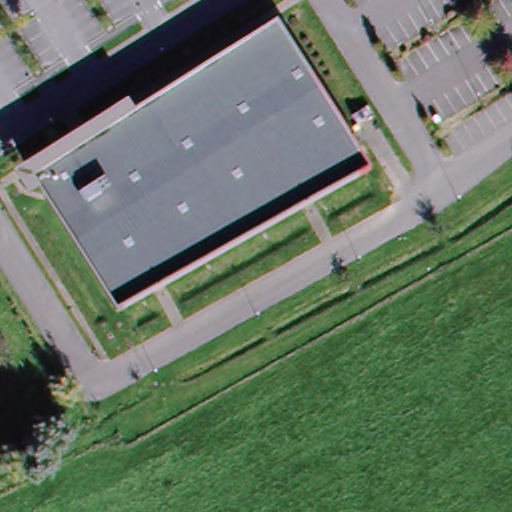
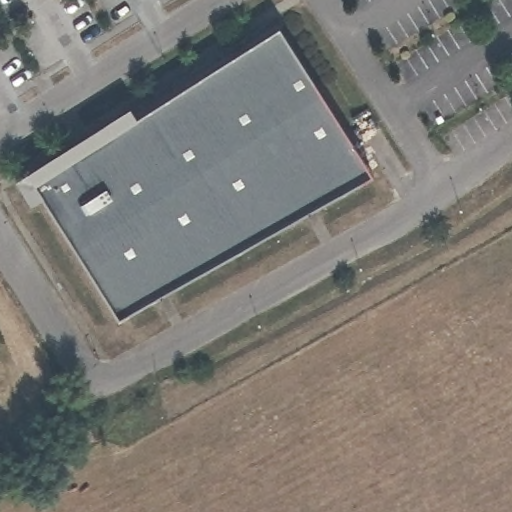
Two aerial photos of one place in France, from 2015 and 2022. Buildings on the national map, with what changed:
unchanged [(129,102),(136,113),(277,24),(372,169),(120,312),(42,190),(31,198),(14,171),(129,102)]

